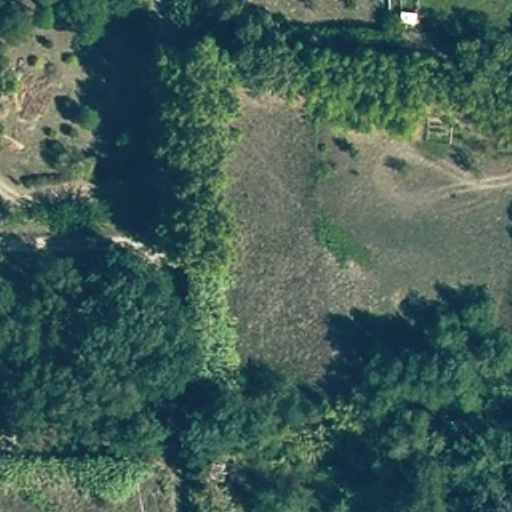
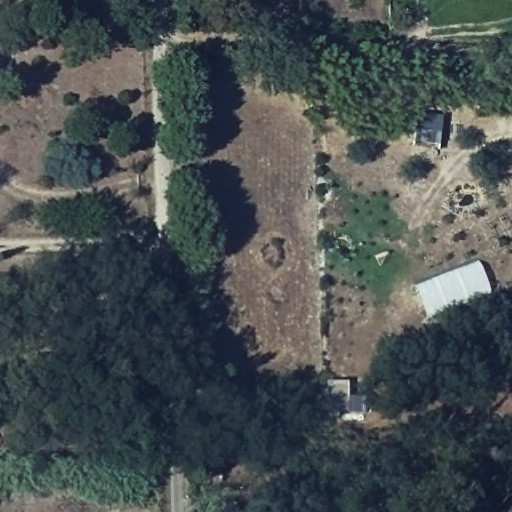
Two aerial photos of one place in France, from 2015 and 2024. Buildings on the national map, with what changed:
new [(477,263),(486,285),(424,310),(415,287),(477,263)]

